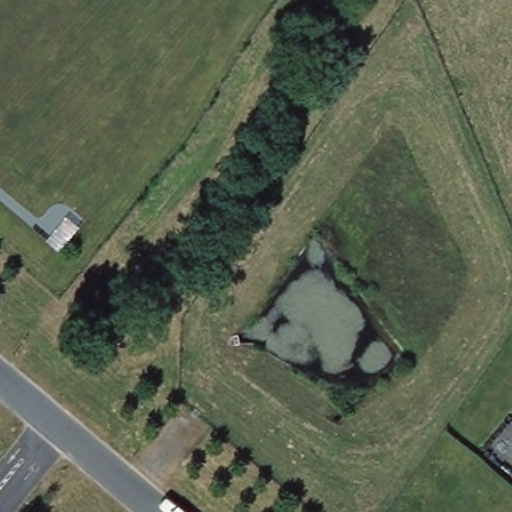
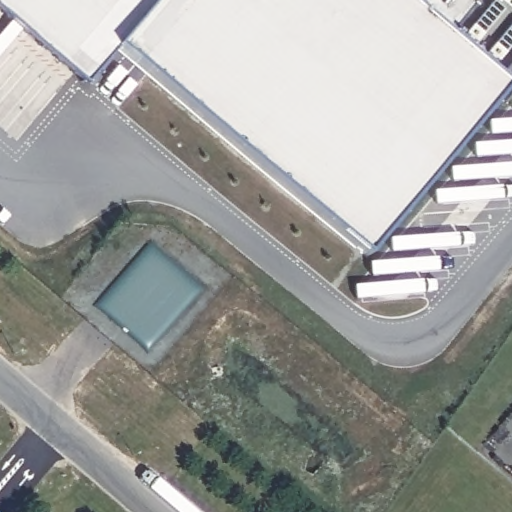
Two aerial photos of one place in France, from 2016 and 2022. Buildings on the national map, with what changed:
new [(118,47),(87,81),(0,9),(0,0),(157,0),(118,47)]
new [(450,32),(473,0),(512,0),(512,62),(502,75),(512,84),(512,85),(368,255),(118,47),(157,0),(412,0),(450,32)]

